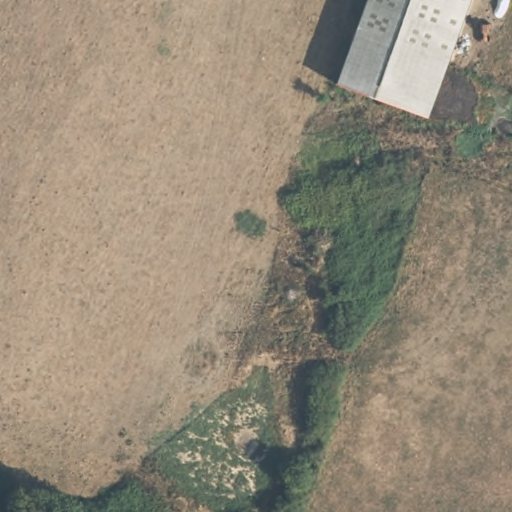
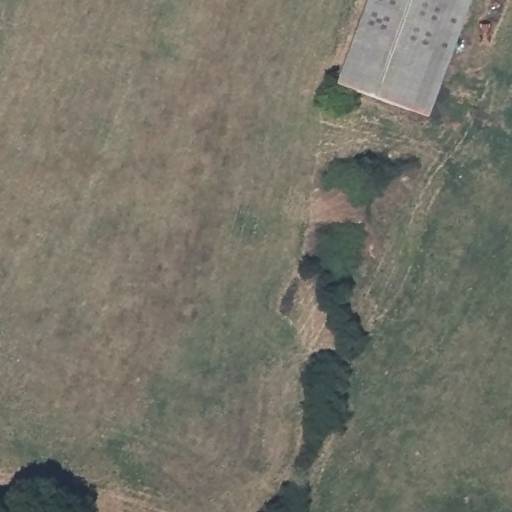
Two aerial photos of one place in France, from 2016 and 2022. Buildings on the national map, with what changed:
unchanged [(340,85),(371,0),(474,0),(429,122),(340,85)]

